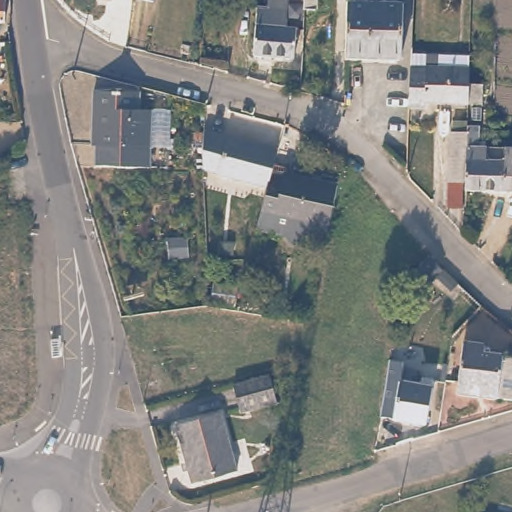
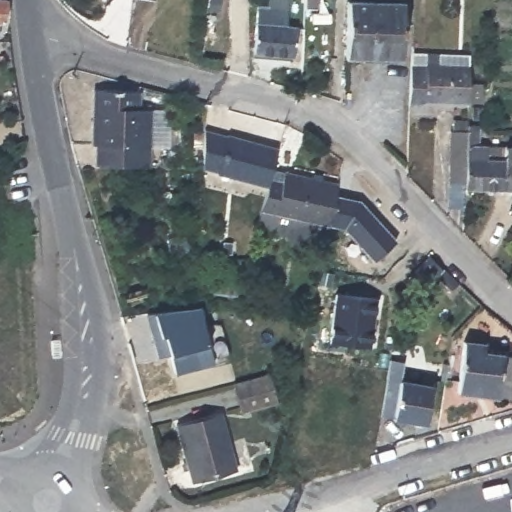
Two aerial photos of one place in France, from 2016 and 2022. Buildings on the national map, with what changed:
unchanged [(0,7),(0,0),(2,0),(2,6),(0,7)]
unchanged [(297,27),(293,57),(252,54),(256,7),(267,7),(268,0),(288,0),(286,26),(297,27)]
unchanged [(303,7),(304,0),(316,0),(315,8),(303,7)]
unchanged [(350,36),(352,15),(377,16),(384,11),(392,12),(405,13),(404,69),(349,66),(350,43),(352,35),(350,36)]
unchanged [(479,100),(468,99),(425,99),(424,105),(408,104),(410,61),(411,49),(426,50),(470,53),(469,79),(481,79),(479,100)]
unchanged [(139,88),(138,105),(151,106),(147,163),(95,159),(96,126),(92,126),(94,88),(139,88)]
unchanged [(471,126),(484,126),(483,150),(489,150),(508,151),(512,151),(512,194),(468,192),(471,134),(471,126)]
unchanged [(274,145),(270,168),(268,177),(267,179),(246,175),(217,170),(217,169),(208,167),(202,128),(203,128),(224,132),(224,130),(238,134),(241,138),(244,138),(249,139),(249,135),(275,140),(274,145)]
unchanged [(465,192),(464,210),(447,209),(451,133),(471,134),(468,192),(465,192)]
unchanged [(270,168),(336,185),(321,243),(308,240),(301,244),(291,242),(285,234),(258,229),(267,179),(268,177),(270,168)]
new [(334,194),(359,199),(396,239),(373,262),(343,228),(326,224),(334,194)]
unchanged [(440,267),(421,287),(407,274),(423,257),(427,253),(440,267)]
unchanged [(447,289),(434,275),(442,267),(456,281),(447,289)]
unchanged [(217,309),(218,289),(256,292),(254,312),(217,309)]
new [(334,293),(376,297),(370,348),(329,340),(334,293)]
new [(152,312),(200,304),(203,323),(220,322),(229,353),(212,358),(213,363),(174,374),(169,354),(156,358),(145,314),(152,312)]
unchanged [(286,312),(287,306),(292,307),(291,313),(286,312)]
unchanged [(463,338),(482,340),(481,347),(501,351),(512,354),(512,397),(455,388),(463,338)]
unchanged [(384,419),(391,382),(390,381),(392,363),(408,367),(406,375),(427,379),(427,383),(437,384),(429,427),(393,420),(384,419)]
unchanged [(275,397),(240,407),(233,382),(267,371),(275,397)]
unchanged [(176,426),(210,415),(214,414),(219,413),(237,471),(212,478),(194,483),(191,475),(176,426)]

